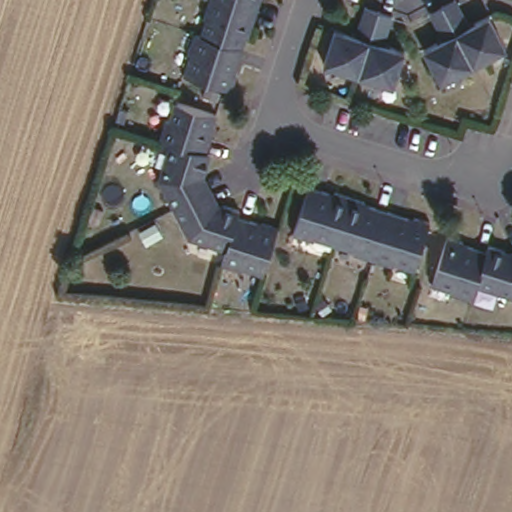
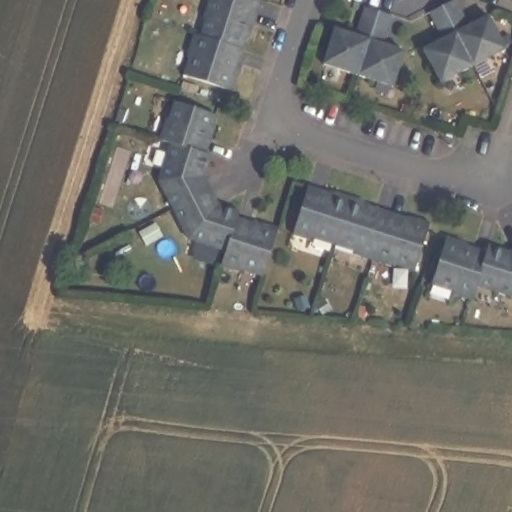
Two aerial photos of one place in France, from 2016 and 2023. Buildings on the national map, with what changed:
unchanged [(240,50),(192,35),(196,25),(200,26),(208,0),(258,0),(240,50)]
unchanged [(321,57),(331,25),(351,31),(364,0),(367,0),(390,8),(381,41),(401,48),(391,80),(321,57)]
unchanged [(448,0),(457,0),(469,22),(486,12),(504,45),(442,80),(421,47),(440,39),(428,11),(448,0)]
unchanged [(235,68),(239,70),(234,87),(185,73),(192,51),(187,49),(192,35),(240,50),(235,68)]
unchanged [(170,139),(159,135),(172,96),(211,108),(200,147),(202,148),(180,158),(165,154),(170,139)]
unchanged [(185,232),(156,176),(165,154),(180,158),(202,148),(206,149),(201,166),(196,167),(205,187),(204,189),(190,234),(185,232)]
unchanged [(354,240),(317,230),(315,235),(300,230),(296,229),(311,180),(315,182),(337,190),(338,185),(366,192),(365,199),(412,212),(397,260),(353,246),(354,240)]
unchanged [(210,200),(217,196),(237,200),(236,211),(273,222),(260,268),(240,261),(238,264),(218,258),(222,243),(190,234),(204,189),(205,187),(210,200)]
unchanged [(432,213),(416,265),(397,260),(412,212),(413,209),(432,213)]
unchanged [(473,281),(470,293),(446,288),(447,284),(430,279),(445,231),(463,234),(462,238),(482,244),(485,239),(506,243),(493,285),(473,281)]
unchanged [(509,250),(512,249),(512,290),(493,285),(506,243),(509,250)]

